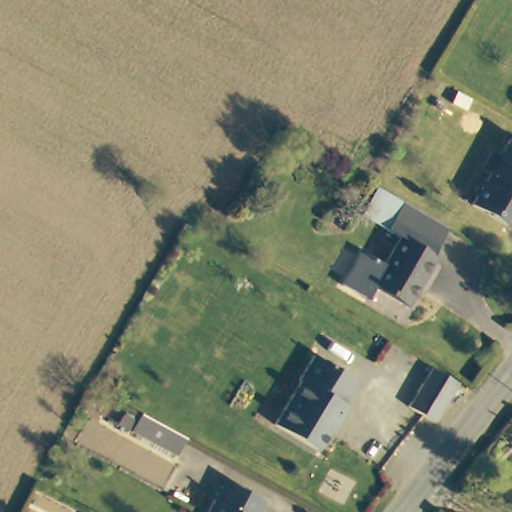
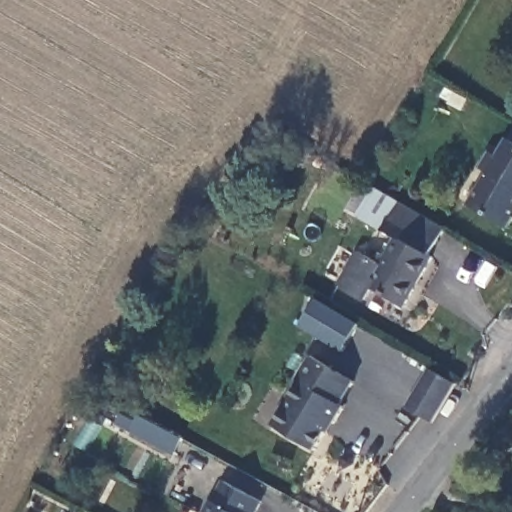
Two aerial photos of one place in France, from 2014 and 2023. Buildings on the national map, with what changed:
unchanged [(490,175),(482,169),(492,153),(501,158),(512,142),(512,143),(512,228),(510,231),(470,206),(473,202),(490,175)]
unchanged [(432,261),(401,311),(371,292),(363,302),(338,285),(357,255),(380,269),(397,243),(381,232),(356,216),(373,189),(399,205),(444,232),(427,258),(432,261)]
new [(318,298),(361,324),(343,351),(300,326),(318,298)]
unchanged [(359,383),(344,405),(349,408),(318,452),(275,426),(316,357),(359,383)]
unchanged [(406,410),(429,371),(443,379),(455,388),(432,425),(412,414),(406,410)]
unchanged [(173,457),(129,435),(140,416),(184,440),(173,457)]
unchanged [(263,504),(259,512),(210,512),(227,482),(263,504)]

